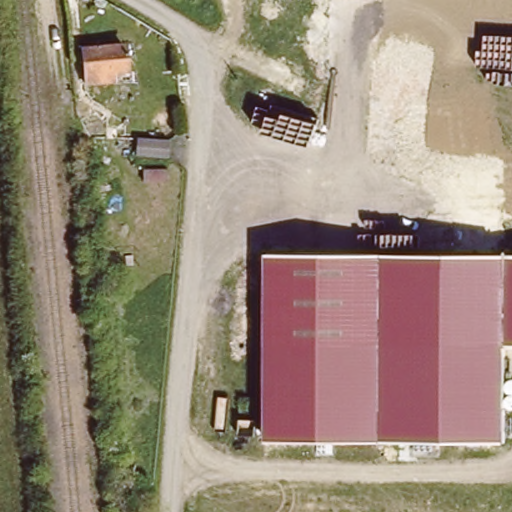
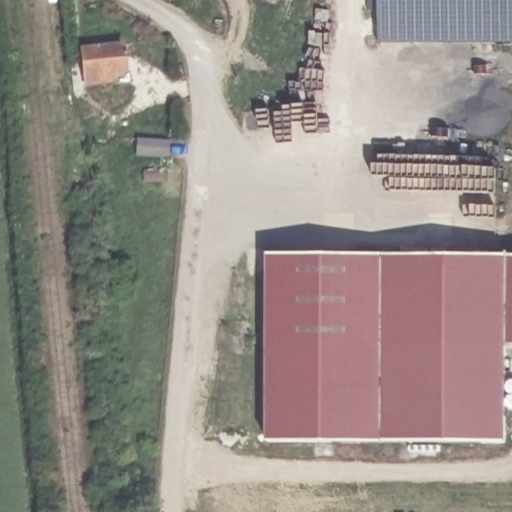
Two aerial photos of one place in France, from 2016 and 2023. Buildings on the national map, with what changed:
new [(512,42),(380,43),(379,0),(512,0),(512,42)]
unchanged [(158,41),(169,40),(172,70),(161,71),(158,41)]
unchanged [(105,84),(92,84),(91,75),(77,76),(75,48),(116,47),(117,75),(105,75),(105,84)]
unchanged [(139,107),(172,108),(172,123),(138,122),(139,107)]
unchanged [(273,250),(387,253),(384,343),(508,346),(505,444),(382,441),(269,438),(273,250)]
unchanged [(387,253),(510,256),(508,346),(384,343),(387,253)]
unchanged [(512,346),(508,346),(510,300),(510,275),(510,256),(512,256),(512,346)]

